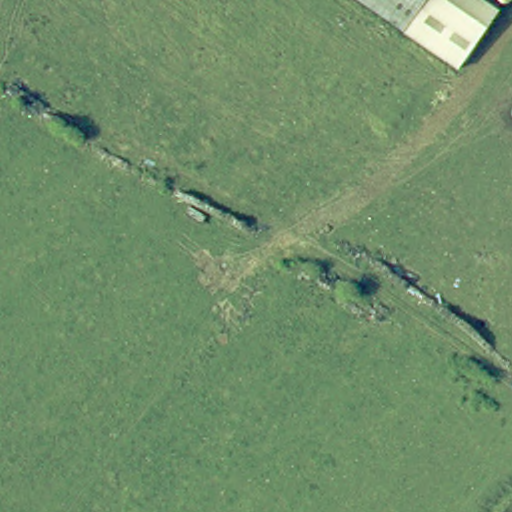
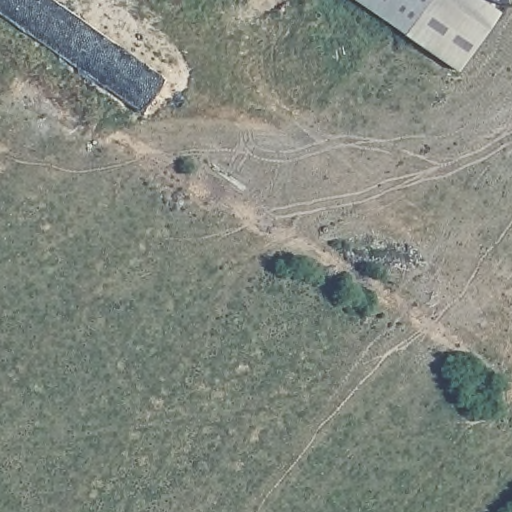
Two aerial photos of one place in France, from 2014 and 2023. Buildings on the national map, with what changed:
unchanged [(405,34),(355,0),(428,0),(405,34)]
unchanged [(428,0),(445,0),(488,29),(460,71),(405,34),(428,0)]

